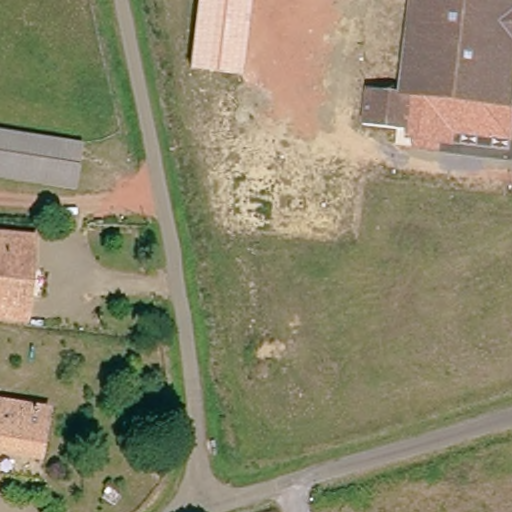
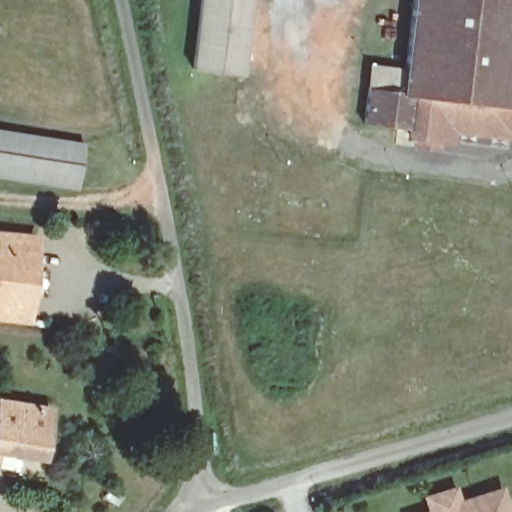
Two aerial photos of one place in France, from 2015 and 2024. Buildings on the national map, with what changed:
unchanged [(190,70),(197,0),(250,0),(241,76),(190,70)]
unchanged [(413,0),(479,0),(455,75),(404,61),(413,0)]
unchanged [(455,75),(479,0),(512,0),(512,83),(511,90),(455,75)]
unchanged [(508,110),(444,103),(412,98),(409,111),(406,133),(357,126),(363,93),(398,97),(404,61),(455,75),(511,90),(508,110)]
unchanged [(409,111),(412,98),(444,103),(508,110),(506,140),(455,132),(452,145),(441,143),(439,150),(414,147),(415,141),(407,140),(406,133),(409,111)]
unchanged [(79,193),(0,181),(0,135),(86,148),(79,193)]
unchanged [(42,243),(32,321),(0,317),(0,237),(30,240),(42,243)]
unchanged [(0,457),(0,402),(50,410),(45,463),(0,457)]
new [(421,497),(456,485),(460,500),(502,487),(510,512),(422,512),(425,511),(421,497)]

